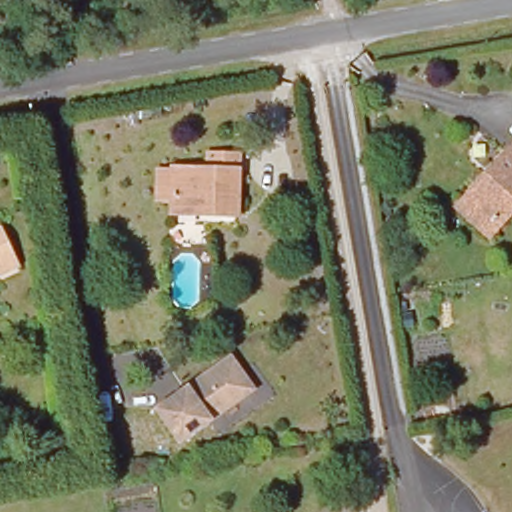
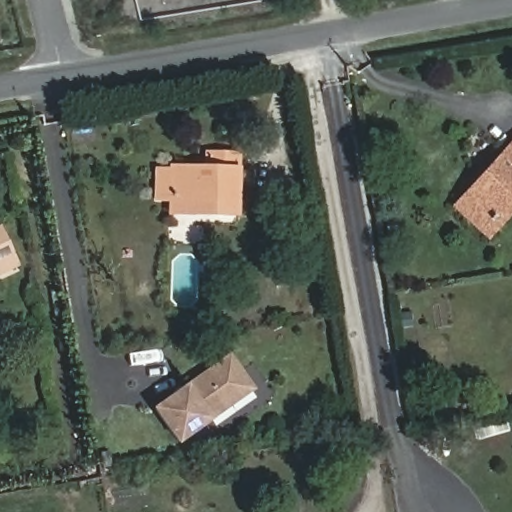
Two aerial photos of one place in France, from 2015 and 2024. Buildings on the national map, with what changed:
unchanged [(465,196),(475,185),(512,142),(512,206),(507,212),(497,224),(465,196)]
unchanged [(201,161),(201,150),(253,150),(251,208),(164,206),(164,161),(201,161)]
unchanged [(25,264),(0,275),(0,232),(6,230),(25,264)]
unchanged [(173,445),(149,409),(227,353),(252,390),(173,445)]

